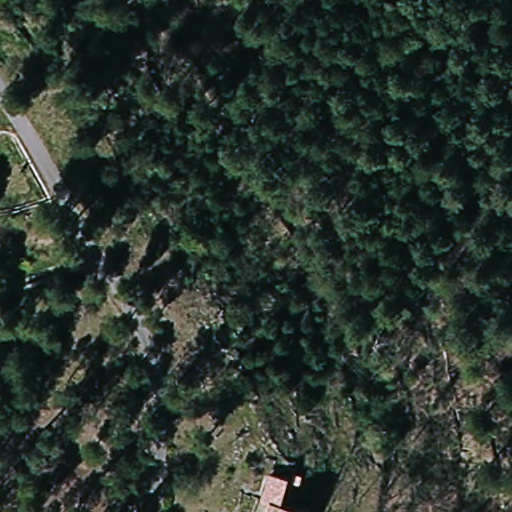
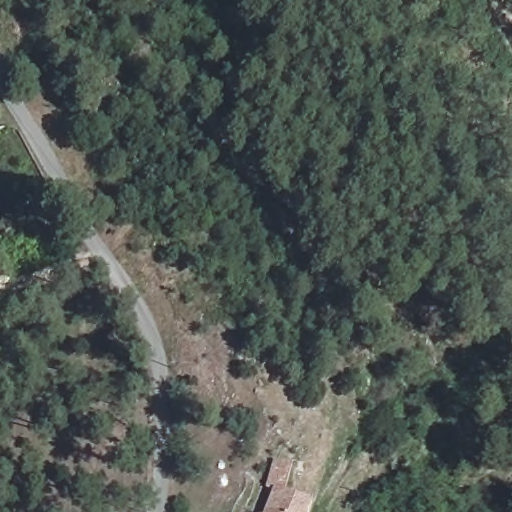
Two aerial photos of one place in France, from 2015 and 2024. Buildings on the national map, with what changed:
unchanged [(265,512),(278,486),(269,480),(282,458),(302,469),(288,491),(314,506),(311,512),(265,512)]

